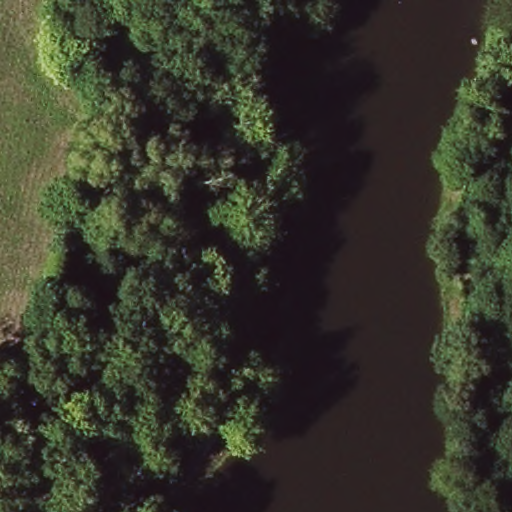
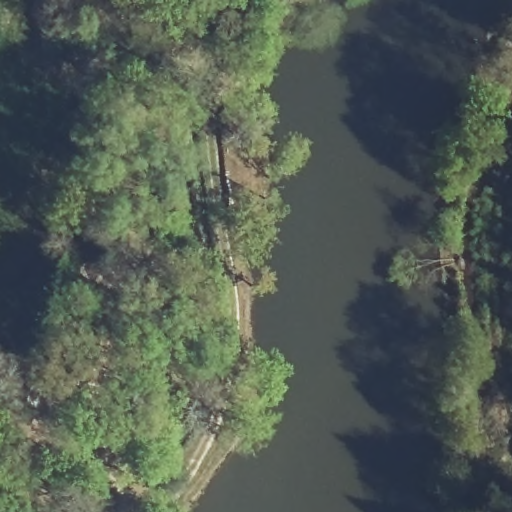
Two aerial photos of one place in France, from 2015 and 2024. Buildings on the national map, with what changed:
unchanged [(102,395),(81,388),(89,361),(91,354),(111,360),(102,395)]

